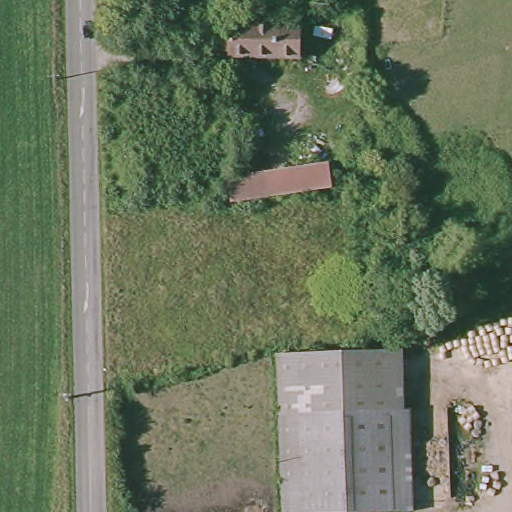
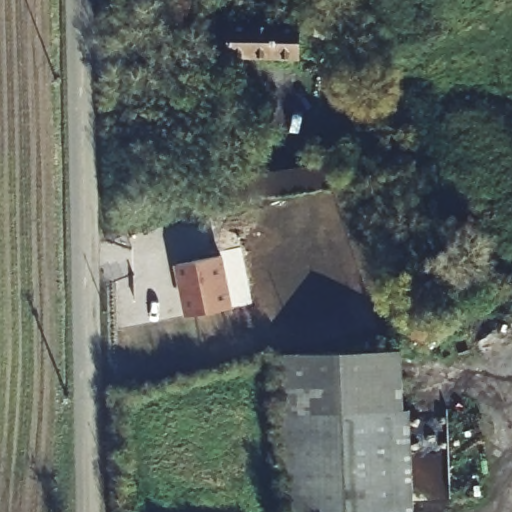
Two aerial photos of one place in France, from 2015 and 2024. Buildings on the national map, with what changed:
unchanged [(239,41),(228,40),(229,17),(240,18),(239,16),(307,18),(305,47),(239,45),(239,41)]
unchanged [(310,165),(315,192),(252,202),(252,213),(230,218),(225,177),(310,165)]
new [(234,307),(187,312),(178,260),(222,252),(234,307)]
unchanged [(393,348),(395,405),(402,405),(404,506),(297,510),(294,407),(275,408),(274,350),(393,348)]

